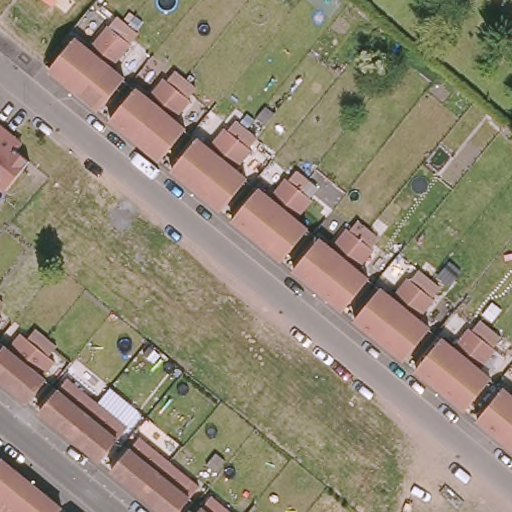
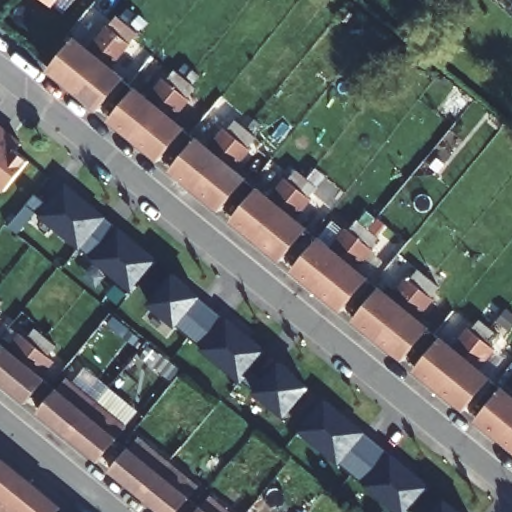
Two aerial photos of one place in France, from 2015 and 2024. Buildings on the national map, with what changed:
unchanged [(47,0),(59,0),(54,6),(47,0)]
unchanged [(49,65),(69,42),(80,51),(96,32),(99,35),(107,25),(117,33),(109,44),(93,62),(74,85),(49,65)]
unchanged [(93,62),(109,44),(117,33),(127,40),(119,50),(122,52),(105,72),(117,81),(97,105),(74,85),(93,62)]
unchanged [(141,106),(157,86),(160,89),(168,80),(178,87),(174,92),(165,102),(154,116),(134,140),(110,120),(130,97),(141,106)]
unchanged [(134,140),(154,116),(165,102),(174,92),(178,87),(187,95),(180,104),(182,106),(166,126),(177,135),(157,160),(134,140)]
unchanged [(18,151),(30,161),(4,192),(0,189),(0,125),(24,145),(18,151)]
unchanged [(202,155),(218,136),(221,139),(229,129),(239,137),(235,142),(215,166),(195,190),(170,170),(190,146),(202,155)]
unchanged [(195,190),(215,166),(235,142),(239,137),(247,145),(240,153),(243,155),(227,175),(237,185),(217,209),(195,190)]
unchanged [(255,195),(267,205),(284,185),(286,187),(295,178),(304,186),(300,191),(280,215),(260,239),(235,219),(255,195)]
new [(105,217),(105,218),(80,247),(41,215),(27,205),(35,195),(49,206),(67,185),(105,217)]
unchanged [(282,257),(260,239),(280,215),(300,191),(304,186),(312,193),(305,201),(308,205),(292,224),(302,233),(282,257)]
new [(105,218),(119,230),(119,229),(158,260),(132,292),(94,260),(94,259),(80,247),(105,218)]
unchanged [(312,245),(322,255),(340,235),(342,237),(350,229),(360,236),(356,241),(336,265),(316,289),(291,269),(312,245)]
unchanged [(356,241),(360,236),(370,245),(362,254),(365,256),(349,276),(360,285),(340,309),(336,305),(316,289),(336,265),(356,241)]
new [(174,275),(190,287),(189,288),(200,297),(199,300),(212,310),(190,336),(177,325),(176,326),(150,304),(174,275)]
unchanged [(354,320),(352,318),(373,293),(384,302),(400,283),(404,285),(412,276),(421,284),(416,290),(396,313),(375,338),(354,320)]
unchanged [(375,338),(396,313),(416,290),(421,284),(430,292),(422,301),(425,304),(409,323),(420,333),(400,358),(375,338)]
new [(212,310),(226,321),(227,319),(267,351),(250,371),(242,380),(241,382),(202,350),(204,348),(190,336),(212,310)]
unchanged [(5,347),(18,332),(25,337),(33,328),(43,336),(4,383),(0,380),(0,346),(2,344),(5,347)]
unchanged [(447,355),(464,335),(467,338),(475,328),(483,335),(479,341),(472,350),(459,365),(439,390),(415,370),(436,346),(447,355)]
unchanged [(439,390),(459,365),(472,350),(479,341),(483,335),(492,343),(485,352),(487,355),(471,374),(482,383),(462,408),(439,390)]
unchanged [(43,336),(54,345),(45,355),(52,360),(40,375),(44,378),(25,401),(4,383),(43,336)]
new [(250,371),(264,383),(280,362),(295,375),(295,377),(309,388),(285,416),(256,392),(256,391),(242,380),(250,371)]
unchanged [(67,435),(38,411),(37,410),(56,387),(77,404),(87,392),(90,395),(99,385),(105,390),(67,435)]
unchanged [(112,395),(103,405),(106,408),(97,420),(117,437),(97,460),(67,435),(105,390),(112,395)]
unchanged [(508,405),(512,400),(512,425),(500,440),(476,420),(497,395),(508,405)]
new [(325,400),(365,432),(364,433),(377,444),(353,474),(340,463),(339,463),(300,431),(325,400)]
unchanged [(500,440),(512,425),(512,450),(500,440)]
unchanged [(137,440),(167,465),(140,499),(109,474),(137,440)]
new [(377,444),(391,455),(392,455),(430,487),(410,512),(397,512),(366,486),(367,485),(353,474),(377,444)]
unchanged [(0,504),(7,496),(0,491),(0,462),(4,457),(27,476),(35,482),(10,512),(0,512),(0,504)]
unchanged [(167,465),(197,490),(179,512),(155,512),(140,499),(167,465)]
unchanged [(64,506),(59,512),(10,512),(35,482),(64,506)]
new [(445,501),(458,512),(436,512),(445,501)]
unchanged [(205,505),(213,512),(200,512),(205,505)]
unchanged [(77,511),(78,512),(77,512),(77,511)]

